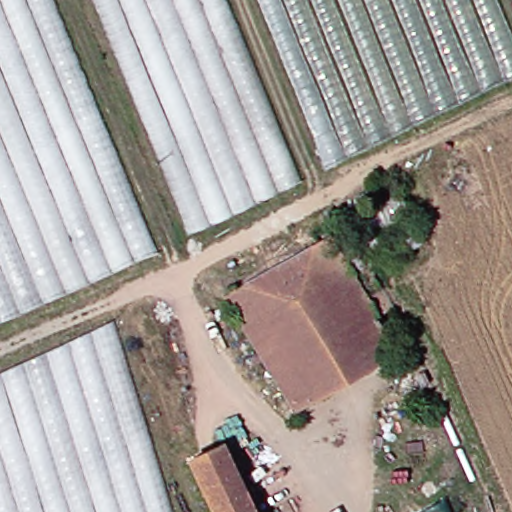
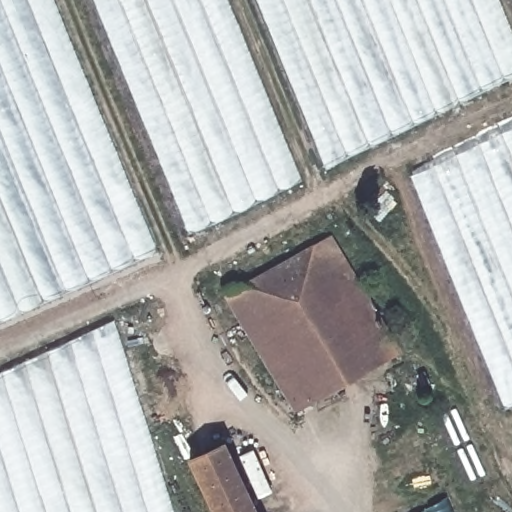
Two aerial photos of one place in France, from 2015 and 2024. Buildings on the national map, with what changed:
unchanged [(160,255),(0,324),(0,0),(56,0),(160,255)]
unchanged [(201,235),(102,0),(232,0),(307,182),(201,235)]
unchanged [(512,23),(512,83),(337,168),(264,0),(503,0),(512,23)]
new [(411,175),(512,127),(512,406),(504,409),(411,175)]
unchanged [(404,348),(306,408),(235,291),(337,234),(404,348)]
unchanged [(174,512),(0,512),(0,372),(113,321),(174,512)]
unchanged [(259,512),(219,512),(201,470),(193,458),(230,441),(259,512)]
new [(454,512),(421,512),(448,500),(454,512)]

